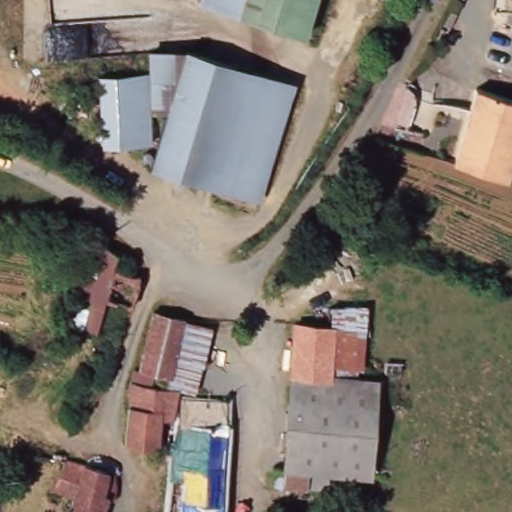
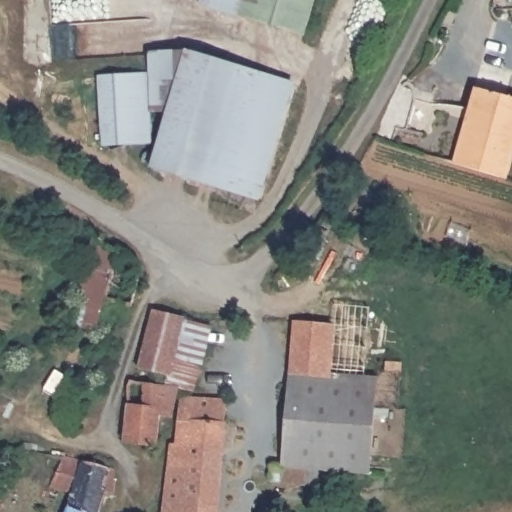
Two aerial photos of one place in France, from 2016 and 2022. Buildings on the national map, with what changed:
unchanged [(202,0),(315,0),(304,35),(200,5),(202,0)]
unchanged [(145,73),(145,55),(180,51),(163,110),(146,111),(145,73)]
unchanged [(146,168),(163,110),(180,51),(288,84),(253,200),(146,168)]
unchanged [(145,73),(146,111),(147,144),(98,146),(94,79),(145,73)]
unchanged [(512,99),(512,160),(507,179),(454,164),(476,88),(512,99)]
unchanged [(94,239),(117,254),(113,269),(140,276),(131,307),(104,300),(96,332),(70,325),(94,238),(94,239)]
unchanged [(332,303),(368,301),(363,377),(329,374),(333,327),(332,303)]
unchanged [(174,357),(186,360),(179,387),(176,396),(167,393),(166,392),(169,377),(137,369),(153,312),(184,319),(174,357)]
unchanged [(213,323),(195,391),(179,387),(186,360),(174,357),(184,319),(213,323)]
unchanged [(369,474),(327,471),(326,487),(305,485),(282,484),(282,481),(272,479),(273,466),(283,466),(291,371),(294,323),(333,327),(329,374),(363,377),(376,378),(369,474)]
unchanged [(127,442),(124,438),(128,404),(127,387),(130,379),(134,381),(166,392),(167,393),(176,396),(172,419),(160,417),(157,444),(127,442)]
unchanged [(167,488),(169,463),(170,444),(175,444),(175,422),(177,422),(180,397),(226,399),(224,422),(225,423),(218,512),(163,512),(167,488)]
unchanged [(100,512),(63,512),(70,494),(49,487),(64,458),(86,462),(114,469),(115,481),(115,482),(114,497),(106,494),(100,512)]

